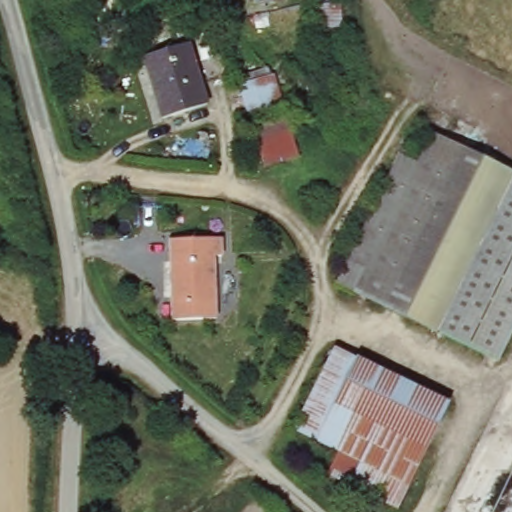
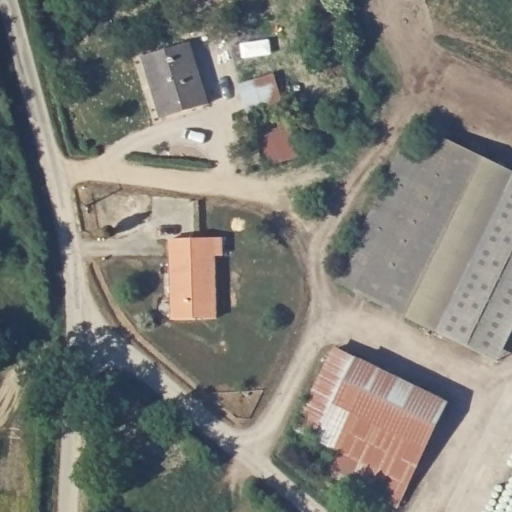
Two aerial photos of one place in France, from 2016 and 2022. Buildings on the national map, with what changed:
unchanged [(186,45),(204,107),(163,118),(145,57),(186,45)]
unchanged [(271,73),(278,99),(245,109),(237,84),(271,73)]
unchanged [(285,118),(297,159),(260,169),(248,129),(285,118)]
unchanged [(433,134),(512,174),(512,182),(434,336),(331,283),(401,145),(423,155),(433,134)]
unchanged [(434,336),(512,182),(512,339),(501,362),(434,336)]
unchanged [(220,240),(220,257),(212,257),(213,322),(168,322),(167,242),(220,240)]
unchanged [(447,407),(395,512),(329,478),(341,455),(293,431),(335,351),(447,407)]

